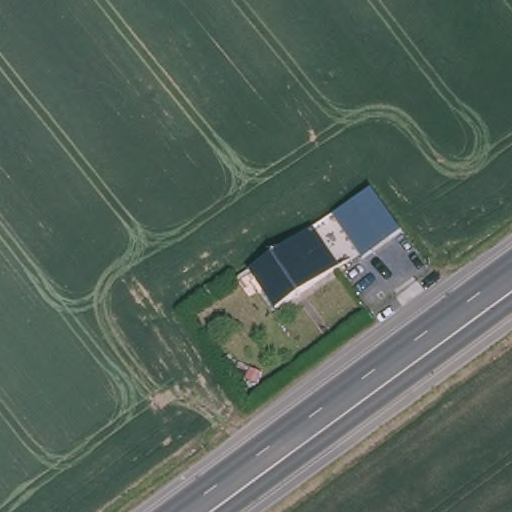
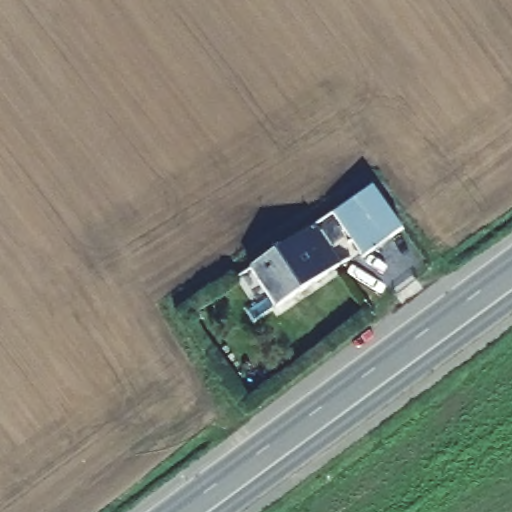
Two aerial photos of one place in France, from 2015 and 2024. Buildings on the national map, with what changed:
unchanged [(360,257),(329,210),(368,183),(400,229),(360,257)]
unchanged [(311,233),(336,271),(278,311),(253,271),(311,233)]

